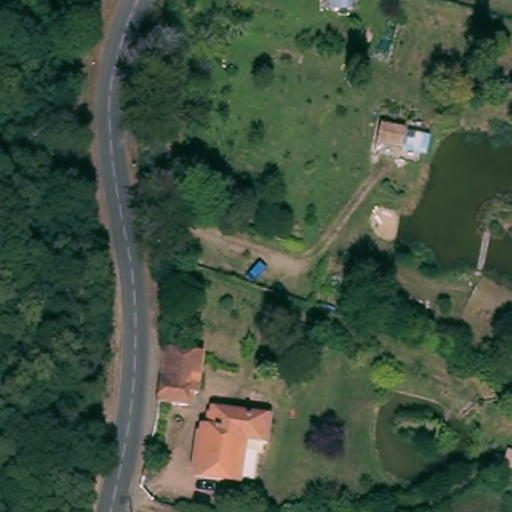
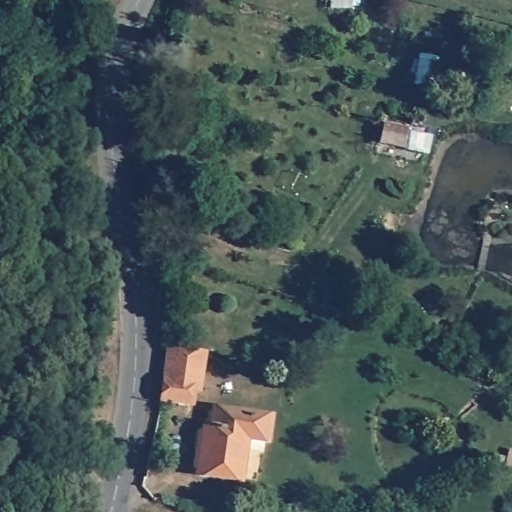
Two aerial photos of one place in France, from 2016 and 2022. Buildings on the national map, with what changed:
unchanged [(165,384),(166,378),(174,351),(209,361),(200,392),(194,391),(189,405),(162,395),(165,384)]
unchanged [(207,426),(213,427),(218,407),(257,413),(257,418),(277,422),(272,446),(249,441),(240,482),(199,473),(207,426)]

